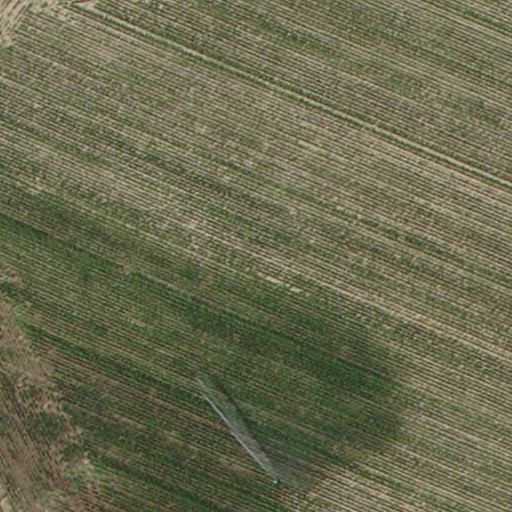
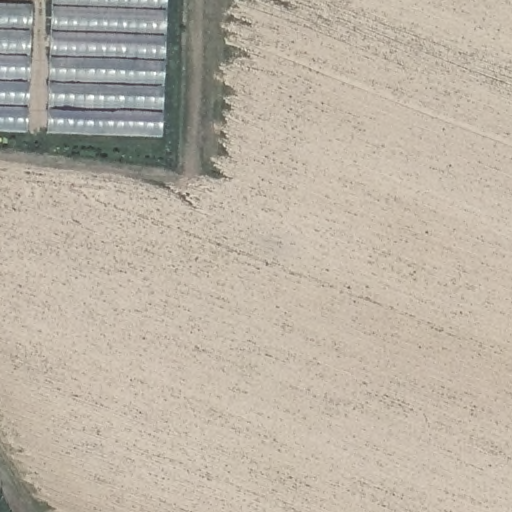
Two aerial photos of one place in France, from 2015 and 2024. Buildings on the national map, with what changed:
new [(52,0),(166,0),(161,138),(46,134),(52,0)]
new [(0,132),(0,2),(32,4),(26,132),(0,132)]

